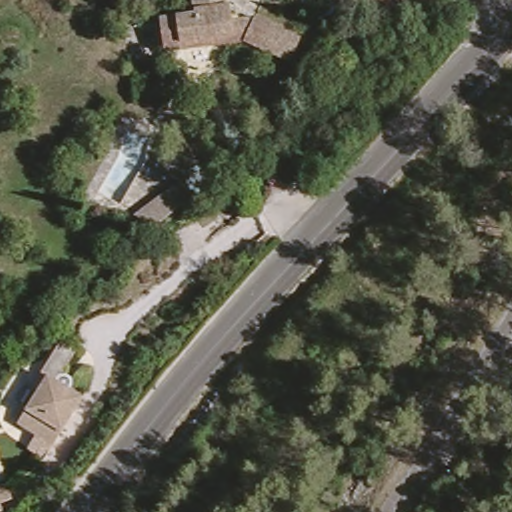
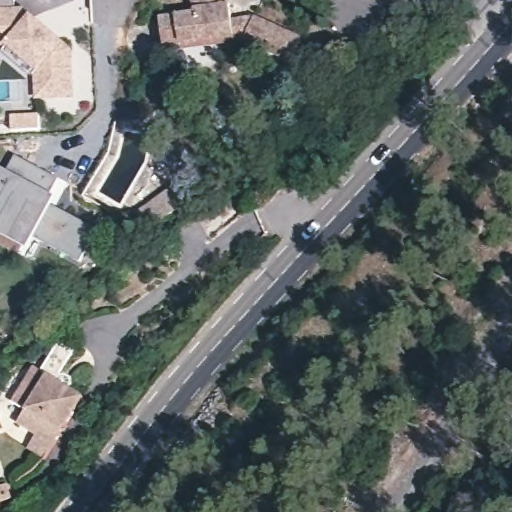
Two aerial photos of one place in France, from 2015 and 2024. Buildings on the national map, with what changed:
new [(27,7),(30,14),(65,44),(71,48),(75,99),(36,101),(38,75),(5,47),(0,48),(0,0),(14,0),(15,7),(27,7)]
unchanged [(163,22),(198,17),(196,0),(228,0),(229,8),(233,8),(235,23),(258,20),(306,42),(294,67),(247,48),(186,56),(168,58),(163,22)]
new [(58,180),(50,192),(56,196),(52,205),(96,230),(80,260),(36,234),(27,249),(0,234),(0,168),(1,167),(8,171),(17,156),(58,180)]
unchanged [(151,225),(132,214),(180,179),(192,196),(151,225)]
unchanged [(60,374),(64,373),(72,377),(73,383),(71,387),(84,395),(56,445),(20,425),(28,411),(26,403),(31,395),(39,392),(47,377),(41,374),(60,339),(75,347),(60,374)]
unchanged [(11,500),(0,504),(0,488),(6,486),(11,500)]

